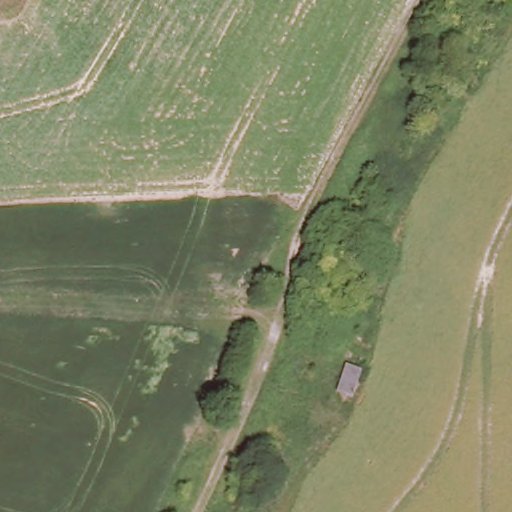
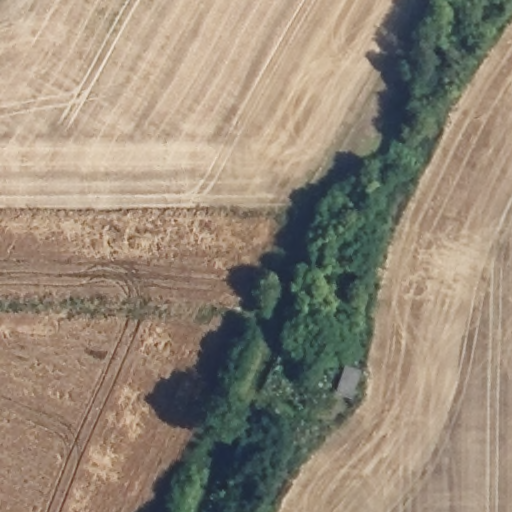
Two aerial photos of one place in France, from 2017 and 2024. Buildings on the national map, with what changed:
unchanged [(341,364),(363,368),(355,399),(332,395),(341,364)]

